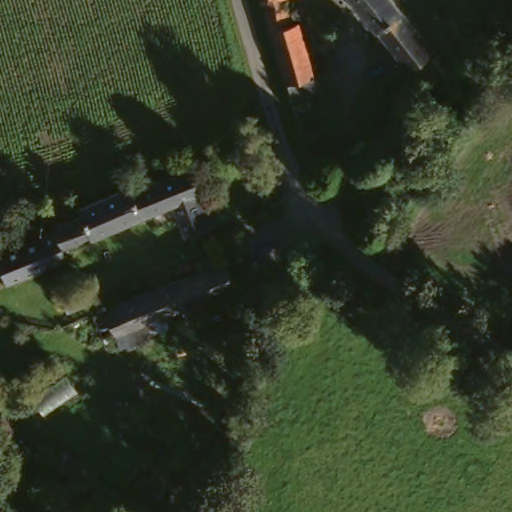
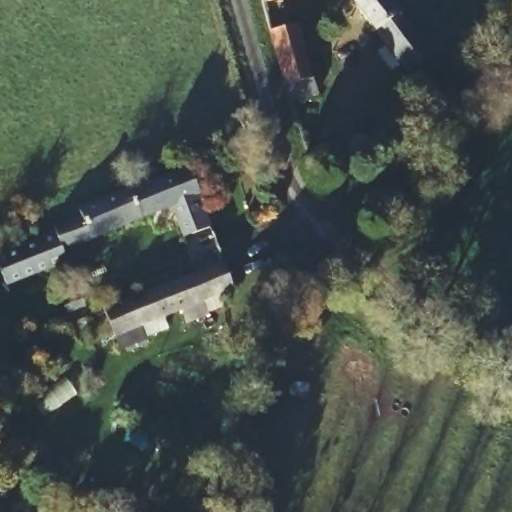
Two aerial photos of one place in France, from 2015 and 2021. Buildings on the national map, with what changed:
unchanged [(299,25),(316,79),(286,88),(263,5),(273,3),(272,0),(286,0),(294,27),(299,25)]
unchanged [(433,58),(410,73),(359,0),(396,0),(406,16),(433,58)]
unchanged [(0,278),(0,258),(19,249),(53,235),(51,226),(77,215),(73,204),(130,180),(133,187),(185,163),(209,222),(191,229),(177,194),(60,247),(66,264),(29,279),(5,290),(0,278)]
unchanged [(104,304),(216,251),(231,282),(115,333),(104,304)]

